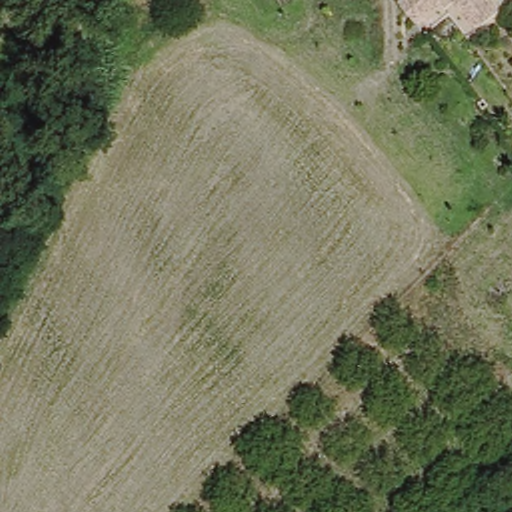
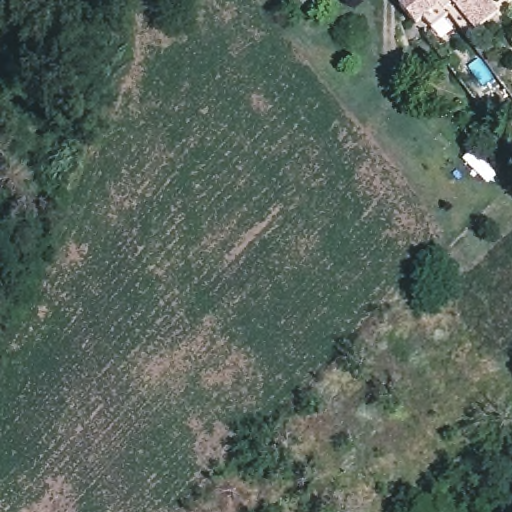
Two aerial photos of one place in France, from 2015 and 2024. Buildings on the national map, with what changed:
unchanged [(402,0),(453,0),(421,28),(402,1),(402,0)]
unchanged [(499,11),(478,28),(454,0),(490,0),(499,11)]

